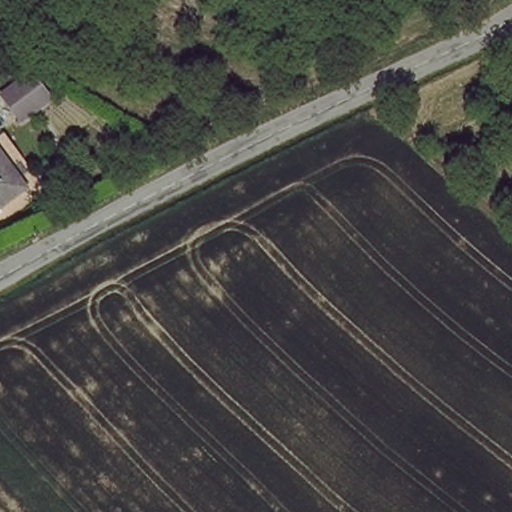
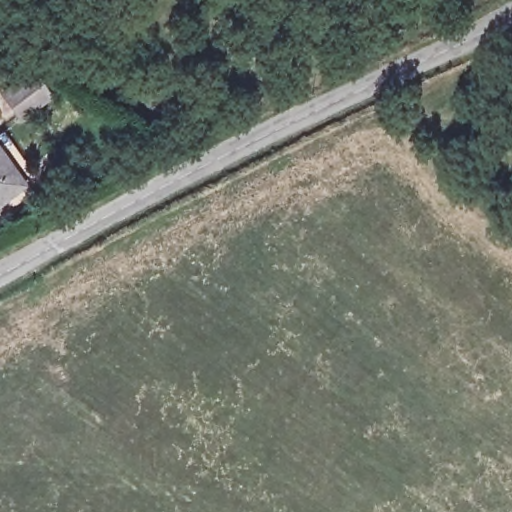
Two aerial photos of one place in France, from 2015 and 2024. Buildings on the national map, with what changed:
unchanged [(21,186),(0,203),(0,158),(21,186)]

